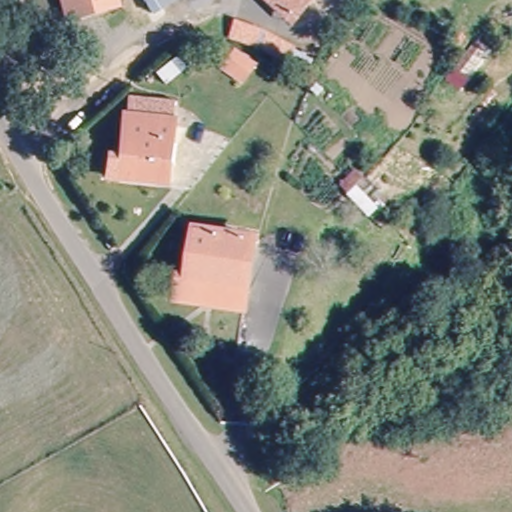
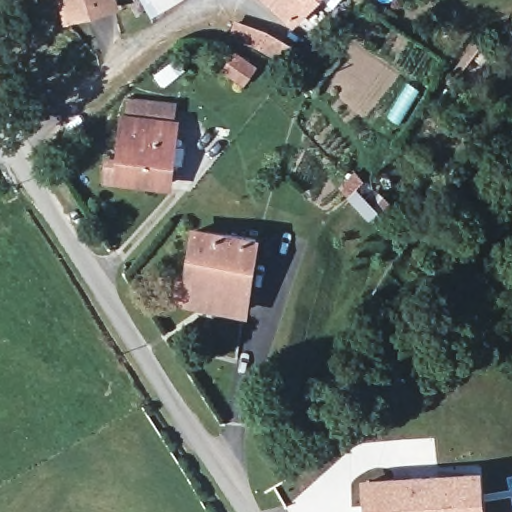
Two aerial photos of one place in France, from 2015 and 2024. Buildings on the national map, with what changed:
unchanged [(115,5),(65,18),(60,0),(114,0),(115,5)]
unchanged [(155,0),(166,0),(158,5),(155,0)]
unchanged [(286,17),(269,0),(304,0),(286,17)]
unchanged [(235,16),(243,18),(288,41),(280,56),(225,27),(235,16)]
unchanged [(252,65),(242,81),(218,67),(227,50),(252,65)]
unchanged [(117,111),(167,113),(166,132),(163,188),(114,185),(116,130),(117,111)]
unchanged [(182,278),(190,227),(251,237),(243,287),(182,278)]
unchanged [(240,311),(171,300),(175,277),(182,278),(243,287),(240,311)]
new [(364,512),(360,477),(477,467),(483,512),(364,512)]

